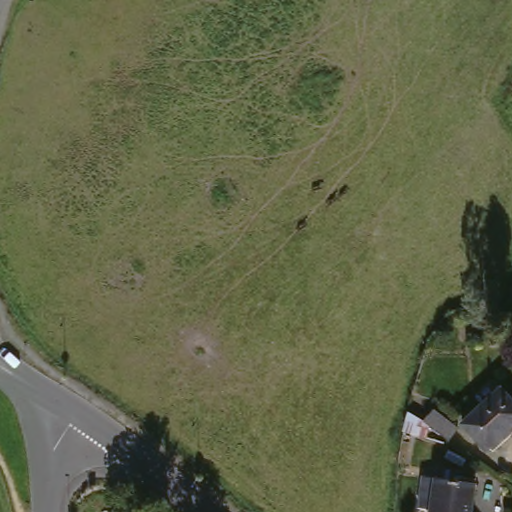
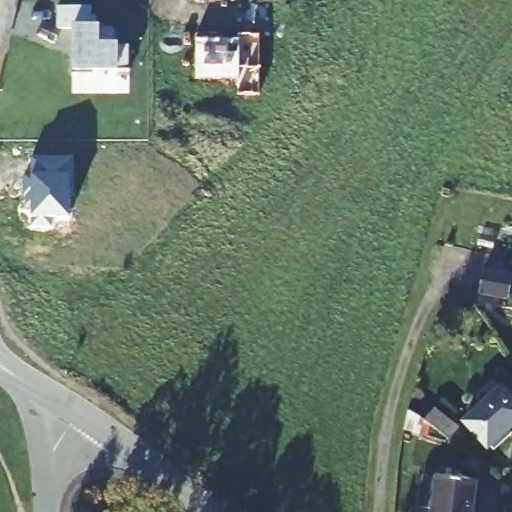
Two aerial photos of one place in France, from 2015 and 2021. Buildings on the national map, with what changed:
new [(56,7),(88,7),(88,26),(114,26),(114,43),(128,43),(128,68),(91,69),(91,71),(72,71),(71,25),(56,25),(56,7)]
new [(236,33),(258,33),(258,93),(237,94),(237,78),(195,78),(194,34),(221,33),(236,33)]
new [(23,196),(22,176),(29,176),(29,158),(72,157),(73,195),(67,195),(68,219),(50,219),(50,227),(30,228),(30,207),(25,207),(25,196),(23,196)]
new [(512,275),(512,281),(509,297),(482,292),(486,270),(512,275)]
unchanged [(512,425),(497,438),(473,411),(510,377),(512,379),(512,425)]
unchanged [(468,417),(459,429),(434,411),(443,398),(468,417)]
unchanged [(432,512),(437,478),(477,483),(473,512),(432,512)]

